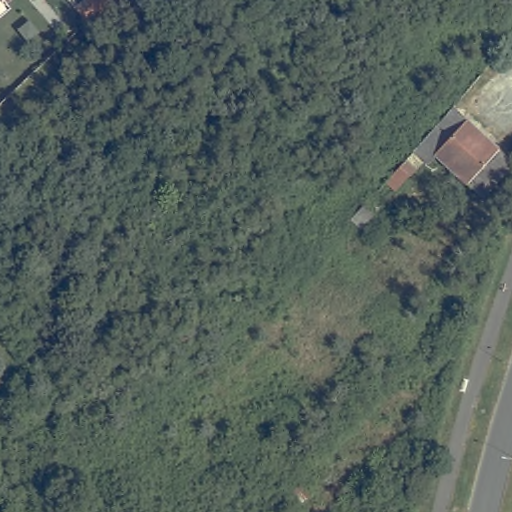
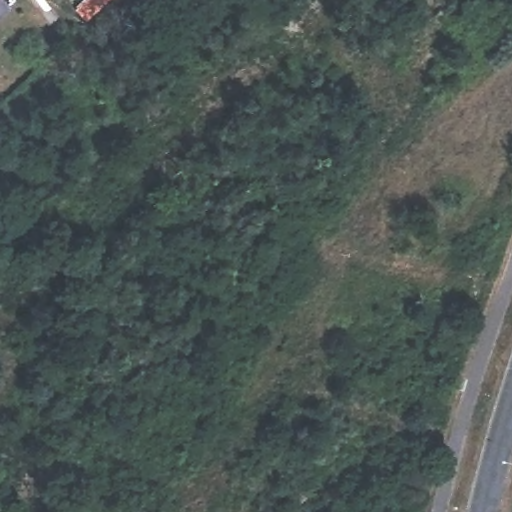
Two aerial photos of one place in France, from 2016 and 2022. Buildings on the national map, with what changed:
unchanged [(7,13),(0,6),(0,0),(14,0),(17,4),(7,13)]
demolished [(437,161),(427,151),(461,113),(512,158),(512,172),(486,198),(444,161),(440,164),(437,161)]
demolished [(380,222),(368,233),(360,224),(371,213),(380,222)]

